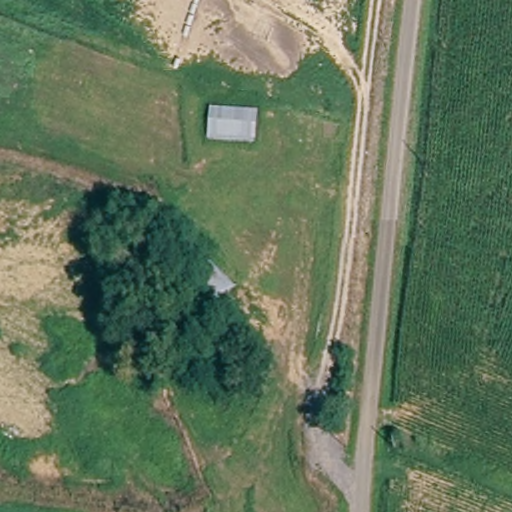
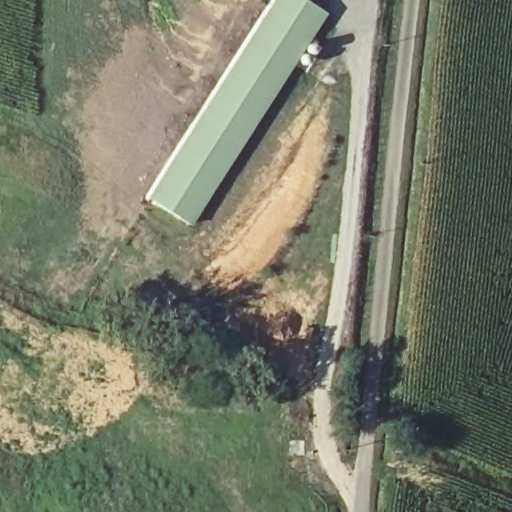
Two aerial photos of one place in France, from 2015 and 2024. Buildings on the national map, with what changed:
new [(193,224),(149,198),(273,0),(307,0),(328,14),(193,224)]

